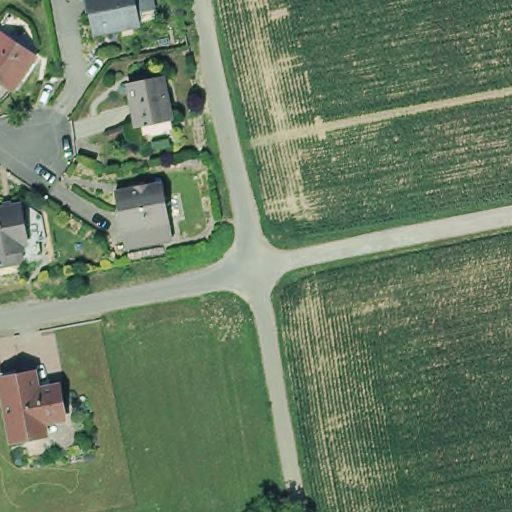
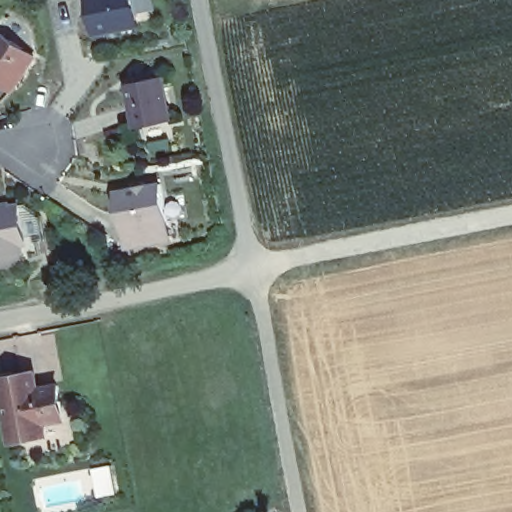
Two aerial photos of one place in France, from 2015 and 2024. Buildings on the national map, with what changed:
unchanged [(131,10),(134,24),(91,32),(84,0),(147,0),(148,6),(131,10)]
unchanged [(0,81),(0,34),(2,31),(36,56),(13,90),(0,81)]
unchanged [(123,81),(142,78),(141,74),(148,73),(149,77),(158,75),(167,118),(148,121),(133,125),(133,123),(123,81)]
unchanged [(124,236),(121,217),(118,218),(111,181),(133,177),(132,174),(141,172),(142,175),(158,172),(164,209),(162,210),(166,228),(124,236)]
unchanged [(0,261),(0,203),(6,202),(5,198),(11,196),(12,201),(20,200),(28,238),(21,239),(24,253),(19,258),(0,261)]
unchanged [(8,436),(0,390),(0,373),(30,368),(33,384),(54,380),(57,396),(54,396),(58,414),(40,417),(43,429),(31,431),(8,436)]

